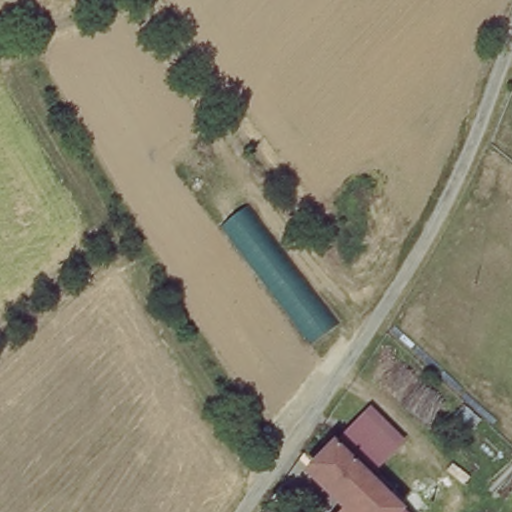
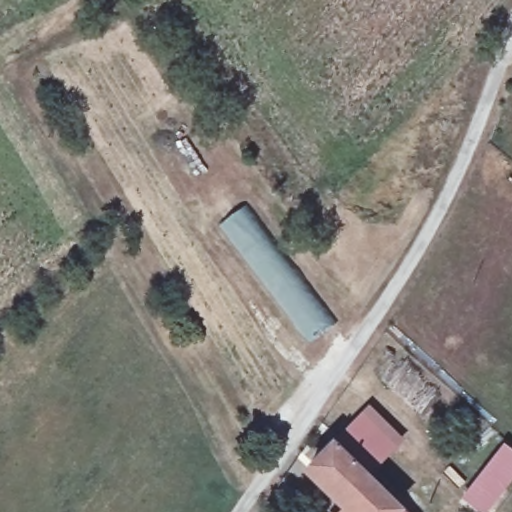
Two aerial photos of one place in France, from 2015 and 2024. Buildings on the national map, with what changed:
unchanged [(335,322),(309,342),(221,221),(244,204),(335,322)]
unchanged [(334,439),(362,411),(393,441),(365,469),(334,439)]
unchanged [(400,504),(391,512),(337,512),(350,500),(311,462),(334,439),(365,469),(400,504)]
new [(462,496),(506,443),(512,447),(512,477),(485,512),(483,512),(462,496)]

